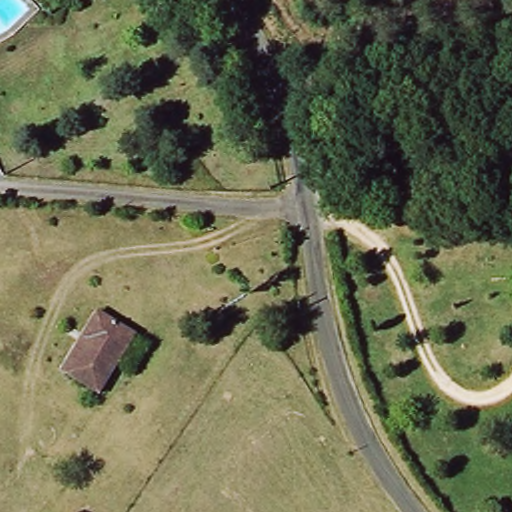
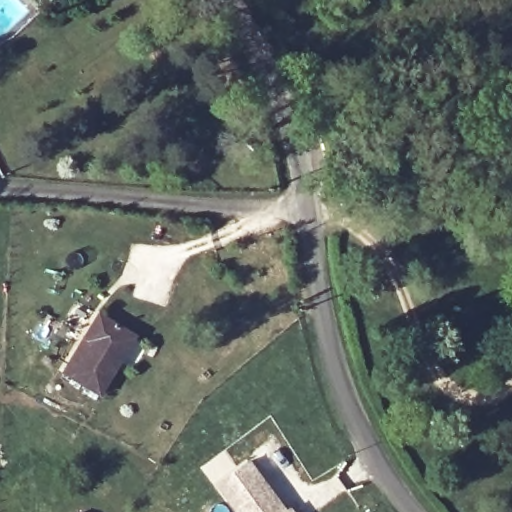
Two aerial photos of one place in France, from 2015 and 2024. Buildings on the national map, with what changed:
unchanged [(96,391),(65,371),(87,338),(79,333),(94,312),(132,337),(96,391)]
new [(290,506),(294,512),(234,512),(214,484),(249,459),(286,509),(290,506)]

